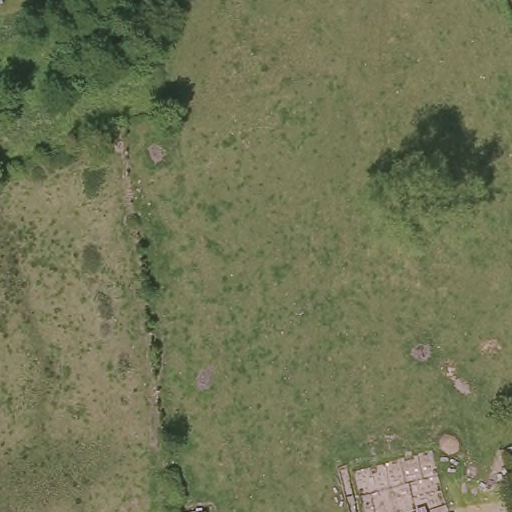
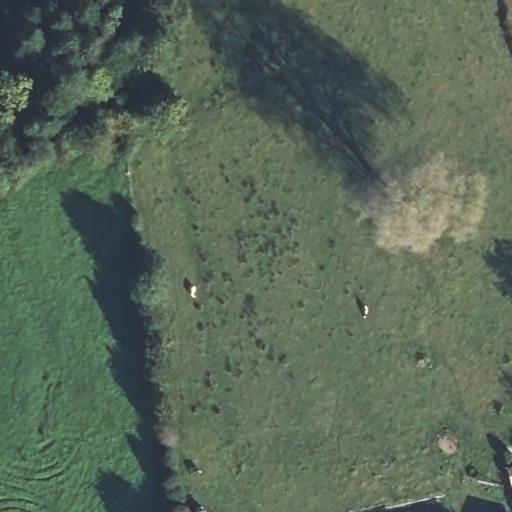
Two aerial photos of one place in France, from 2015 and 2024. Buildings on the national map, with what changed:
unchanged [(426,508),(428,512),(418,512),(417,510),(426,508)]

